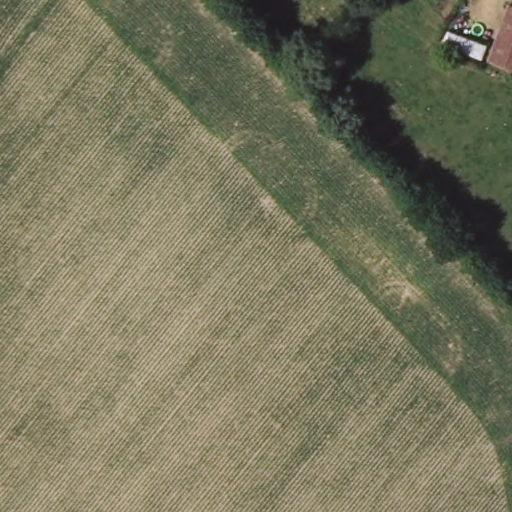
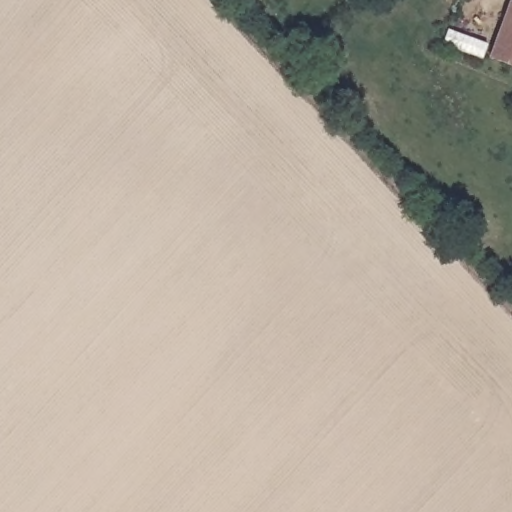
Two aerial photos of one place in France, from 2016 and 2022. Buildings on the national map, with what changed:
unchanged [(512,65),(489,56),(506,3),(512,5),(512,65)]

